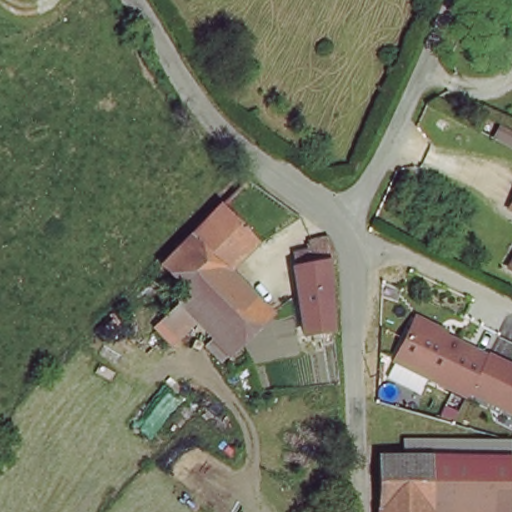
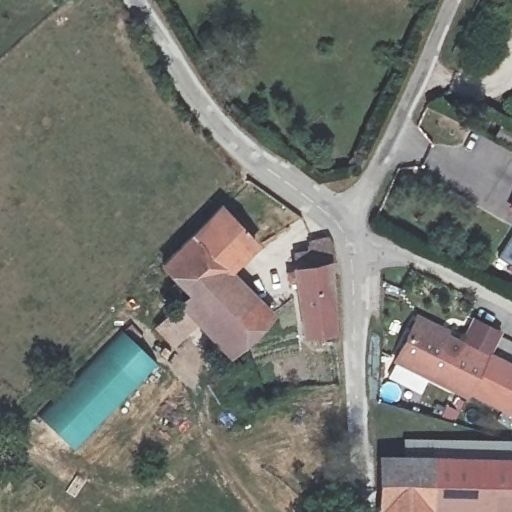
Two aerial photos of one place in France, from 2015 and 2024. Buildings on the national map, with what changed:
unchanged [(235,350),(185,302),(191,295),(165,268),(223,208),(256,237),(230,268),(275,312),(249,337),(235,350)]
unchanged [(335,340),(306,342),(294,266),(305,264),(306,252),(325,251),(335,340)]
unchanged [(512,272),(512,273),(511,273),(512,272)]
new [(202,319),(175,348),(157,330),(185,302),(202,319)]
unchanged [(488,354),(512,366),(512,413),(469,391),(467,395),(395,360),(415,320),(486,356),(488,354)]
new [(123,331),(157,365),(73,450),(40,416),(123,331)]
unchanged [(381,465),(405,466),(405,450),(503,456),(510,460),(510,512),(380,512),(381,465)]

